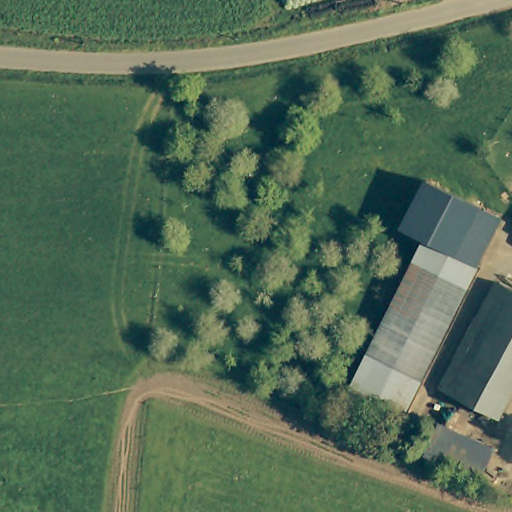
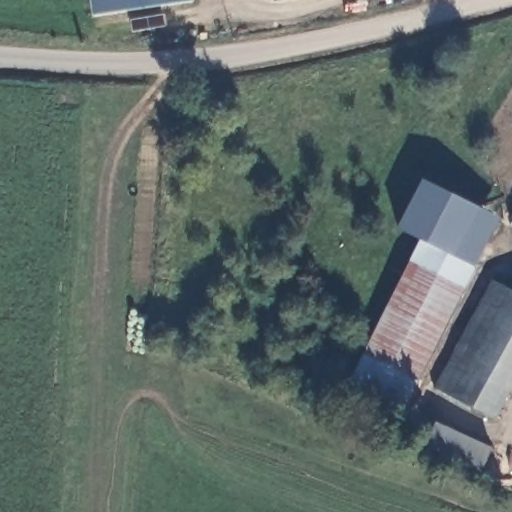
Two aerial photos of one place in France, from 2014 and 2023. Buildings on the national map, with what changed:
new [(93,15),(91,0),(189,0),(93,15)]
unchanged [(421,239),(420,241),(396,228),(421,180),(498,219),(474,265),(421,239)]
unchanged [(340,400),(353,374),(420,241),(421,239),(474,265),(409,395),(392,427),(340,400)]
unchanged [(492,280),(494,281),(509,289),(512,291),(512,388),(495,419),(434,383),(492,280)]
unchanged [(476,481),(422,450),(439,420),(493,450),(476,481)]

